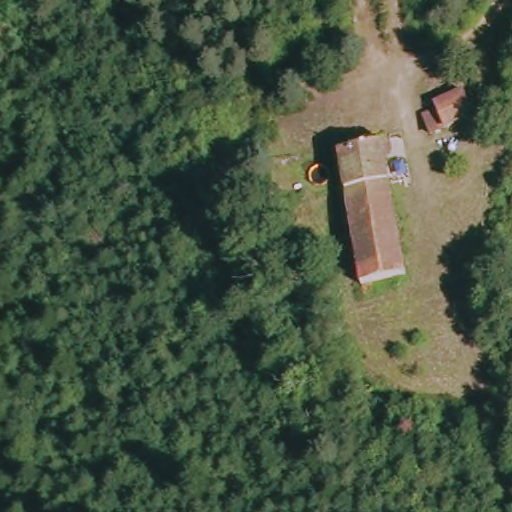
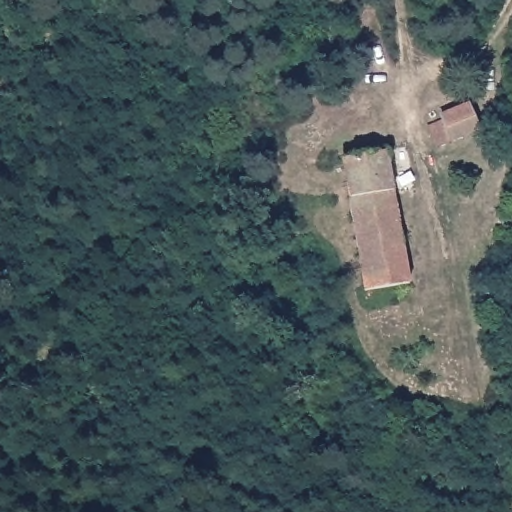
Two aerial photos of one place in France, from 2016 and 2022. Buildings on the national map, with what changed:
unchanged [(474,103),(482,132),(442,149),(434,129),(449,124),(446,115),(474,103)]
unchanged [(366,291),(344,159),(388,152),(410,284),(366,291)]

